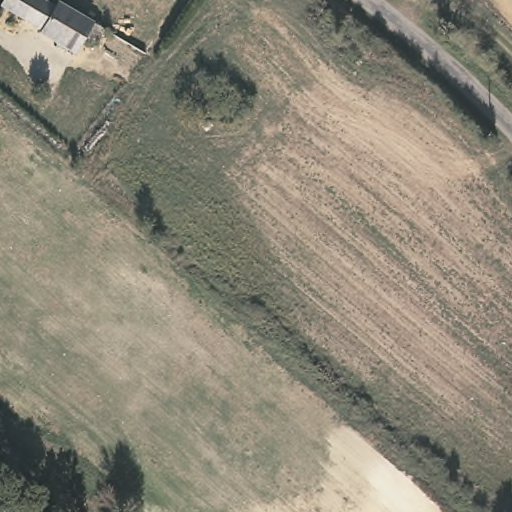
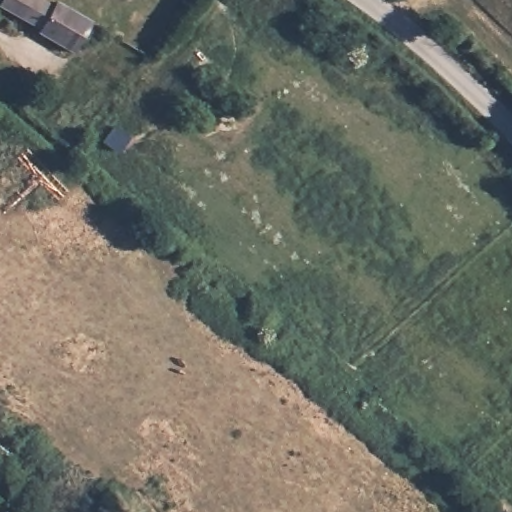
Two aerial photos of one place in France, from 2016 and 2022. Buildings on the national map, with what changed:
unchanged [(52,5),(96,33),(88,48),(72,39),(68,46),(0,6),(0,0),(34,0),(49,10),(52,5)]

